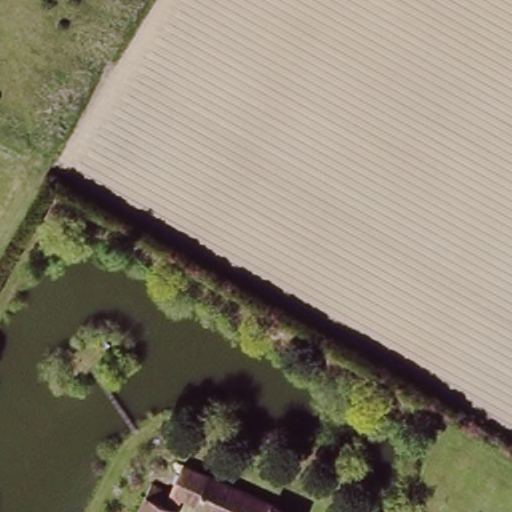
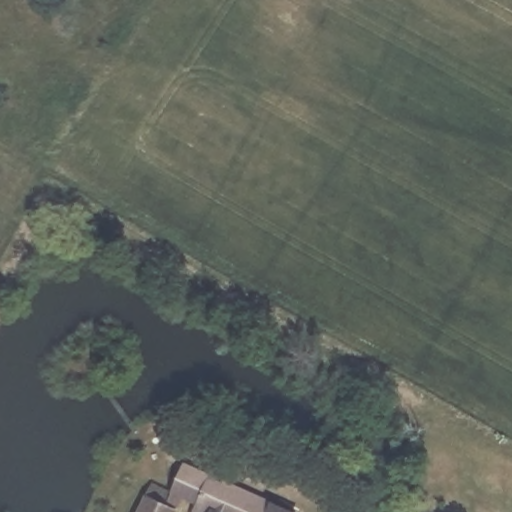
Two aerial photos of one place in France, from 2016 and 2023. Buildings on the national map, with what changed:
unchanged [(192,501),(167,488),(181,463),(206,477),(267,512),(186,512),(192,501)]
unchanged [(147,482),(165,491),(160,502),(172,508),(170,512),(132,512),(147,482)]

